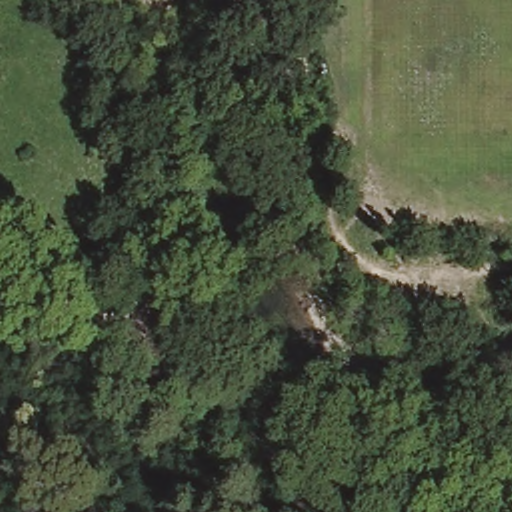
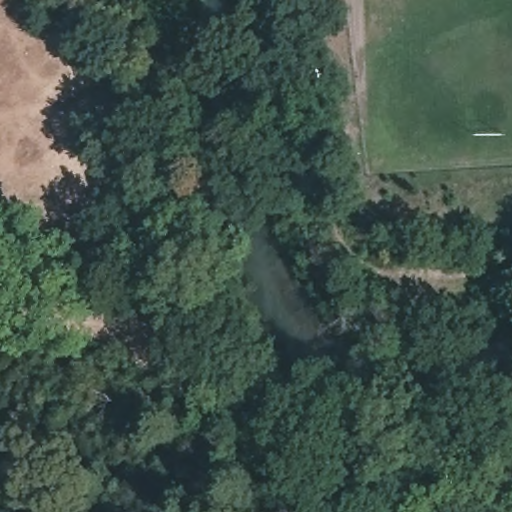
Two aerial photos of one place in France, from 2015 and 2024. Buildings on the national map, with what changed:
[]

